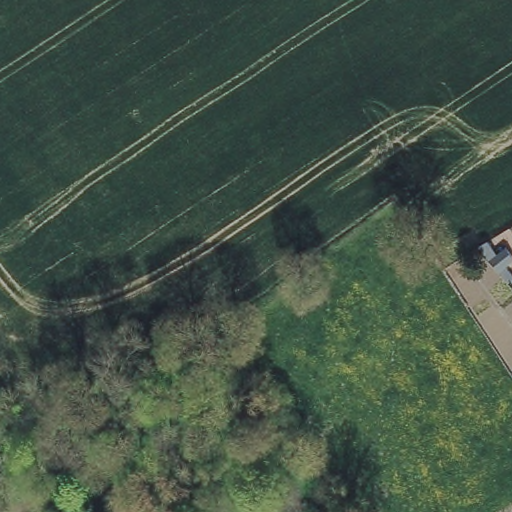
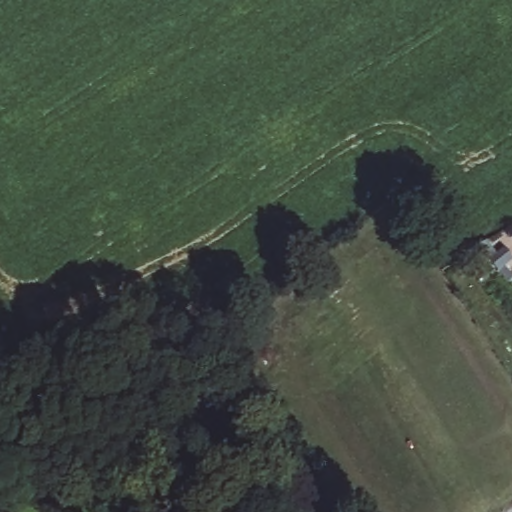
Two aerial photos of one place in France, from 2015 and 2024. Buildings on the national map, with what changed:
unchanged [(488,260),(479,248),(488,242),(496,253),(506,245),(512,252),(512,261),(508,265),(512,270),(512,273),(505,279),(499,272),(488,260)]

